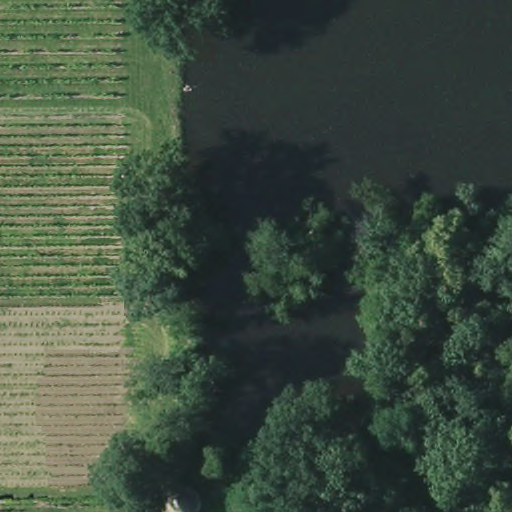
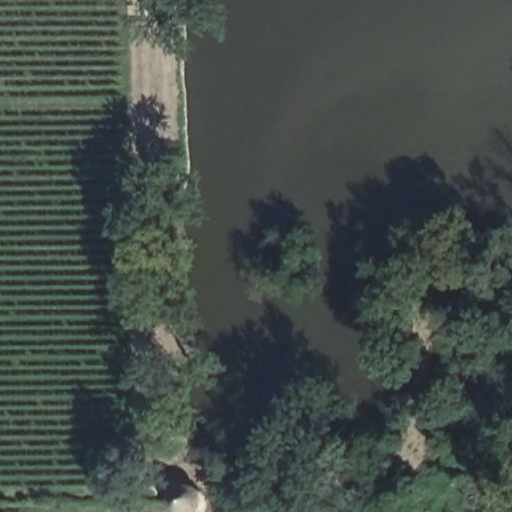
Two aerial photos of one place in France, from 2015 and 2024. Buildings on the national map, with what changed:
unchanged [(192,482),(198,485),(203,490),(206,496),(206,503),(204,510),(202,512),(175,512),(174,511),(171,505),(171,497),(173,491),(178,485),(184,482),(189,482),(192,482)]

